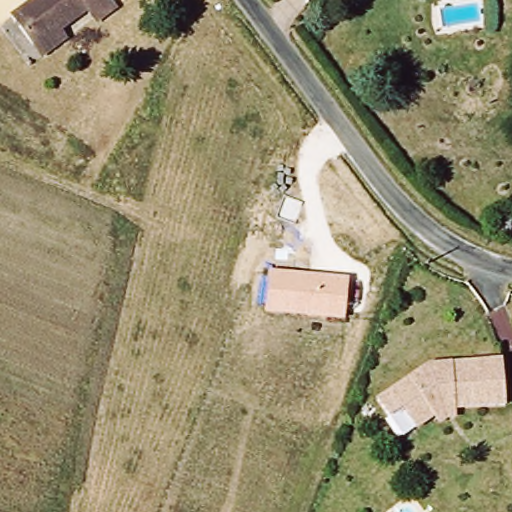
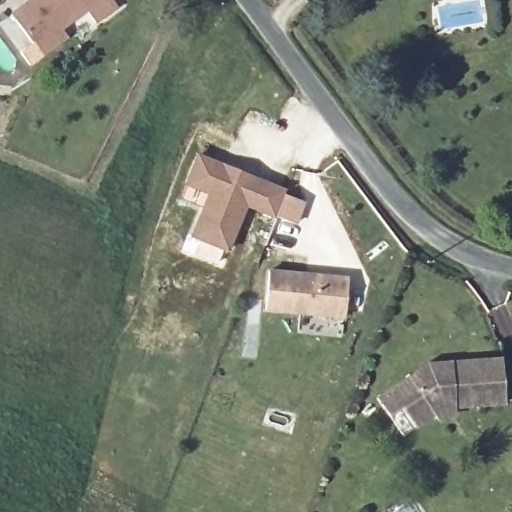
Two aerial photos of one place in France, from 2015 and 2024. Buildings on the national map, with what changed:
unchanged [(24,48),(2,20),(31,0),(104,0),(110,9),(87,25),(81,15),(52,35),(56,43),(33,60),(24,48)]
new [(284,188),(273,218),(246,207),(228,253),(190,237),(207,193),(185,185),(197,153),(284,188)]
unchanged [(271,271),(347,279),(344,318),(267,310),(271,271)]
unchanged [(435,418),(432,413),(412,427),(397,408),(385,417),(372,400),(422,365),(498,356),(504,400),(448,407),(449,413),(435,418)]

